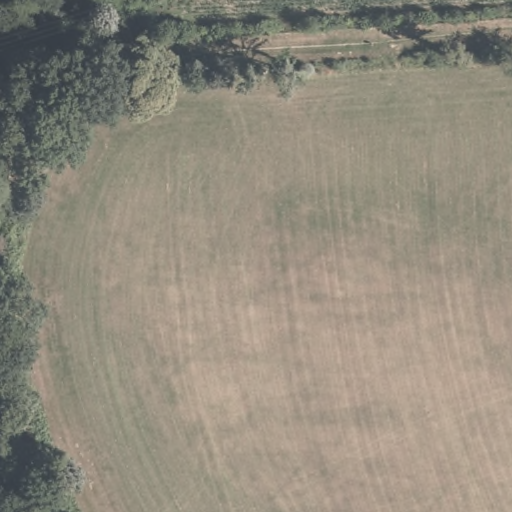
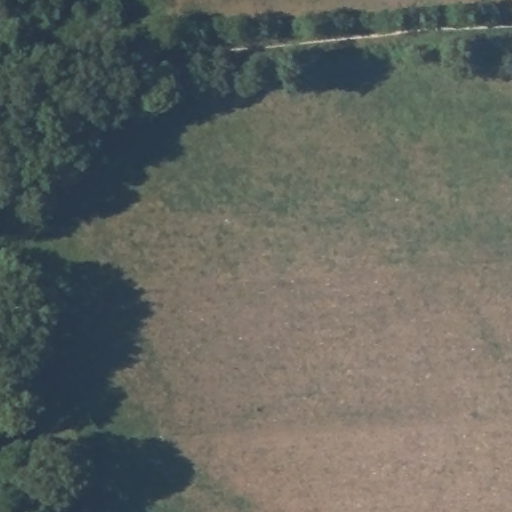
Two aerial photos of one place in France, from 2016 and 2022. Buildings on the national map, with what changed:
[]

